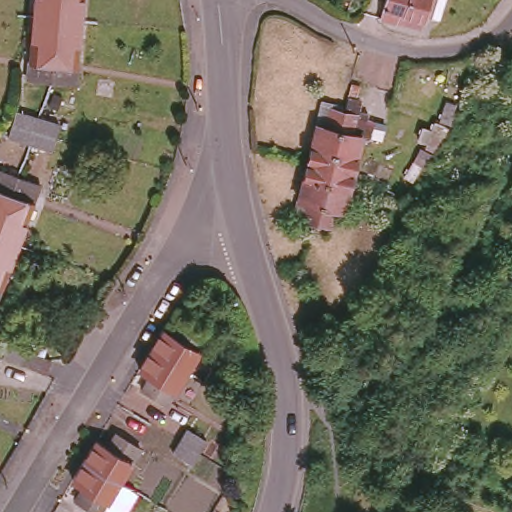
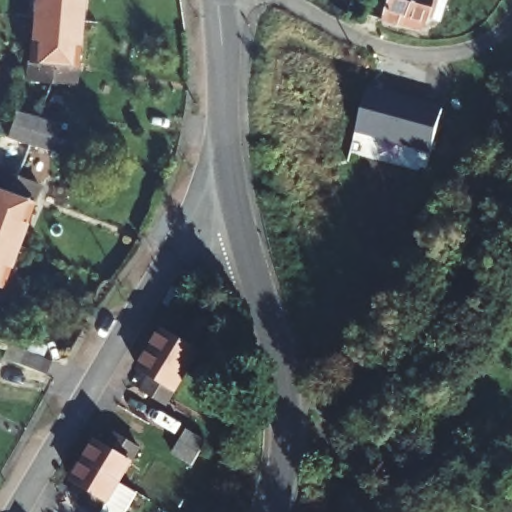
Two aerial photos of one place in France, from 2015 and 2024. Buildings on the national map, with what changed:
unchanged [(28,38),(31,14),(32,0),(81,0),(80,19),(78,43),(76,63),(74,82),(50,80),(25,78),(26,58),(28,38)]
unchanged [(432,4),(430,4),(427,19),(383,10),(384,0),(432,0),(432,4)]
new [(356,133),(369,85),(443,106),(430,153),(356,133)]
demolished [(308,197),(297,194),(306,158),(315,120),(327,123),(331,107),(343,110),(355,113),(350,129),(362,132),(353,170),(344,206),(332,203),(328,221),(316,217),(303,213),(308,197)]
unchanged [(24,140),(5,135),(8,121),(11,110),(46,118),(55,121),(52,132),(49,146),(24,140)]
unchanged [(13,184),(36,192),(33,200),(33,202),(30,211),(22,232),(15,253),(7,274),(0,294),(0,180),(13,184)]
unchanged [(153,346),(166,326),(167,327),(176,333),(184,318),(211,333),(189,368),(153,346)]
unchanged [(189,368),(168,402),(144,387),(152,373),(143,366),(141,366),(153,346),(189,368)]
unchanged [(214,366),(213,385),(213,391),(199,382),(210,363),(214,366)]
unchanged [(89,452),(101,432),(102,433),(111,439),(119,426),(145,441),(125,473),(89,452)]
unchanged [(174,449),(181,437),(188,426),(208,437),(201,449),(194,461),(174,449)]
unchanged [(125,473),(141,483),(128,504),(112,495),(104,508),(80,492),(88,478),(79,472),(78,471),(89,452),(125,473)]

